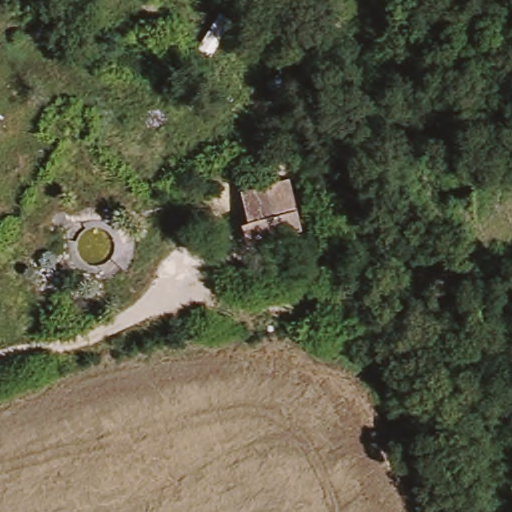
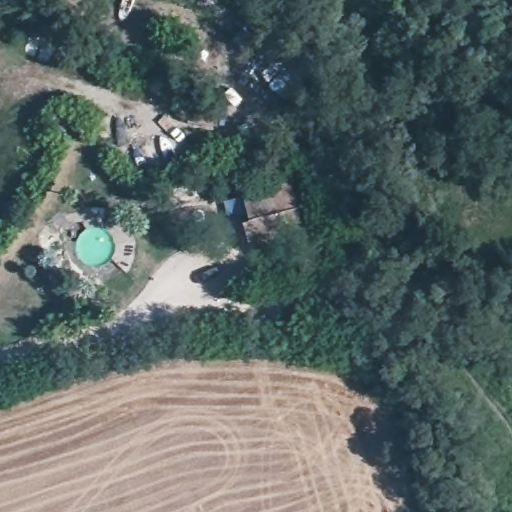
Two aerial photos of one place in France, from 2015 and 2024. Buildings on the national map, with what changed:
unchanged [(295,224),(258,236),(253,214),(241,217),(234,185),(280,172),(295,224)]

